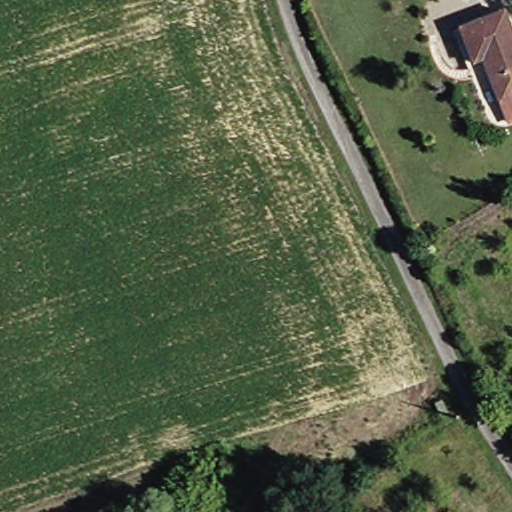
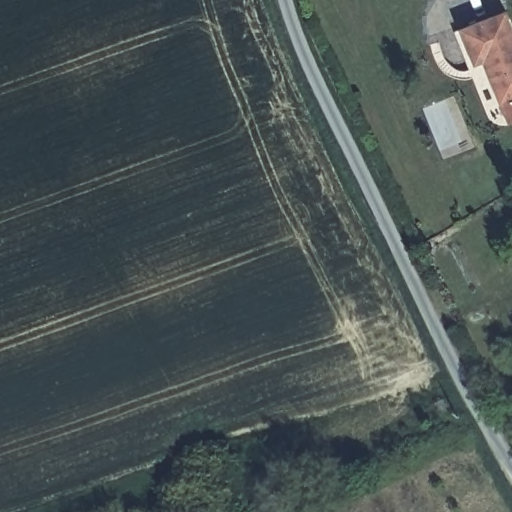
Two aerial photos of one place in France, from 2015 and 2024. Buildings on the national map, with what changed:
unchanged [(512,121),(489,60),(480,63),(467,28),(511,12),(512,15),(512,121)]
unchanged [(451,411),(440,416),(434,402),(445,397),(451,411)]

